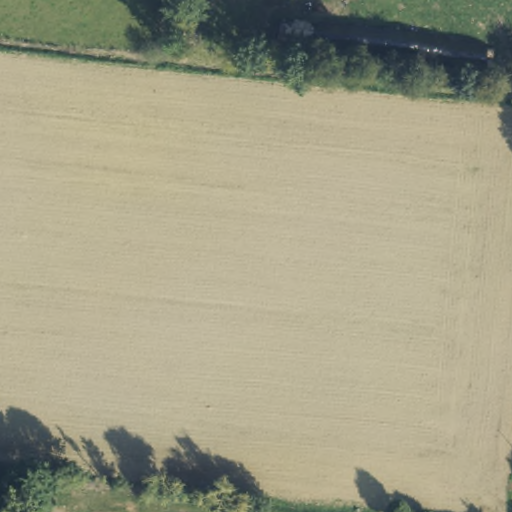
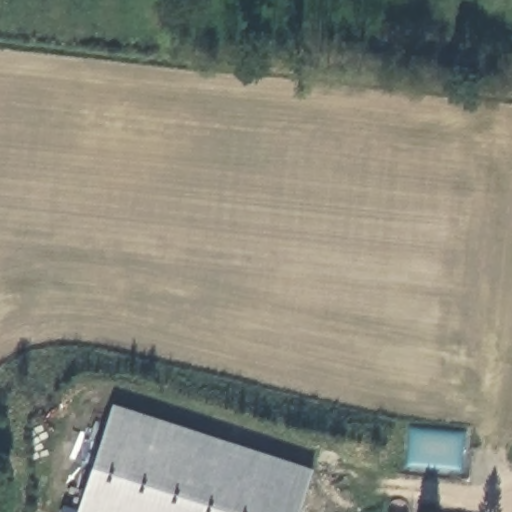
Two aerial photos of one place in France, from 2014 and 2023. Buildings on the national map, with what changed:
new [(311,470),(298,512),(77,512),(112,405),(311,470)]

